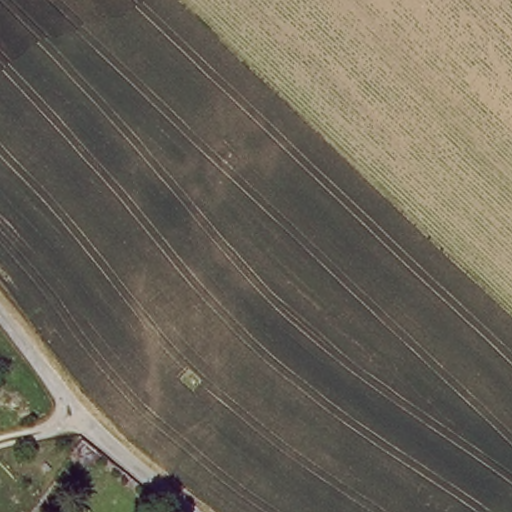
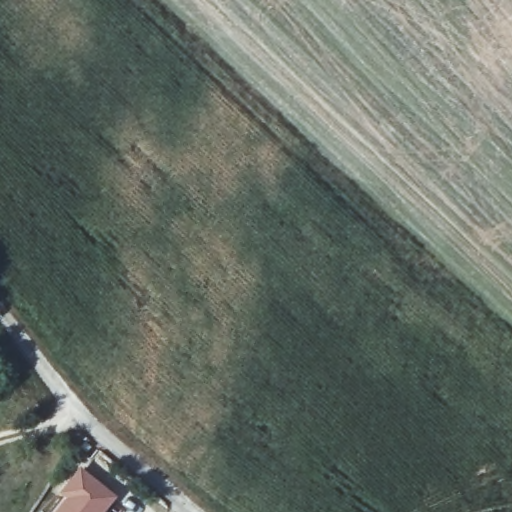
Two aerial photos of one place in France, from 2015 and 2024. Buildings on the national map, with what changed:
new [(63,497),(58,493),(79,466),(118,496),(106,512),(51,512),(63,497)]

